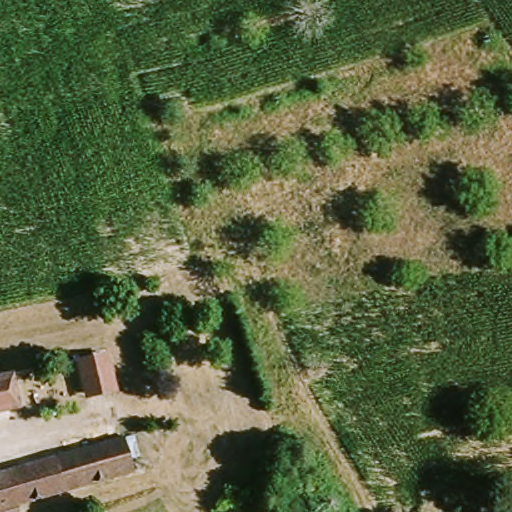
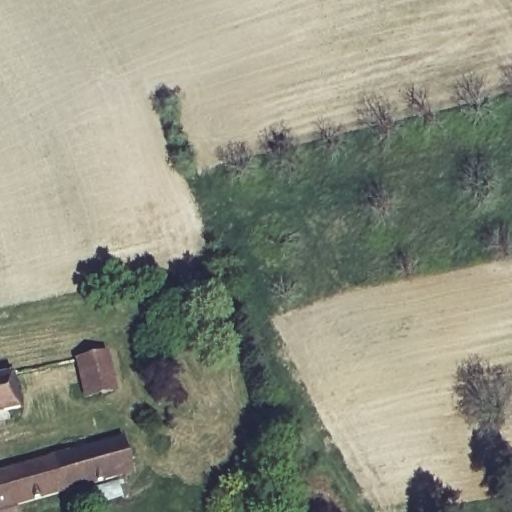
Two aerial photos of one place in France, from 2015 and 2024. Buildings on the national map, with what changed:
unchanged [(114,391),(80,397),(69,356),(105,349),(114,391)]
unchanged [(12,372),(22,405),(0,411),(0,376),(12,372)]
unchanged [(135,471),(0,508),(0,468),(127,433),(135,471)]

